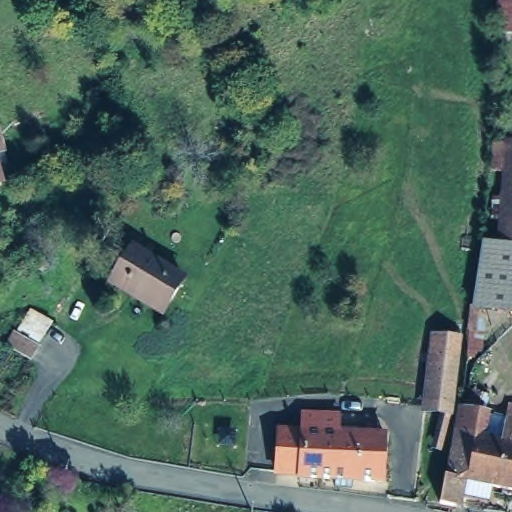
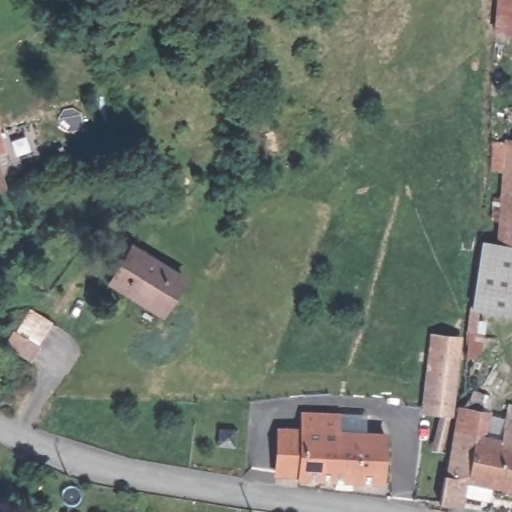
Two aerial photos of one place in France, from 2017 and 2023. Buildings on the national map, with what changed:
unchanged [(492,0),(512,0),(512,36),(491,35),(492,0)]
unchanged [(480,235),(489,237),(496,173),(485,172),(486,134),(512,134),(512,316),(469,313),(480,235)]
unchanged [(181,274),(161,309),(110,280),(129,244),(131,245),(181,274)]
unchanged [(14,332),(18,334),(32,316),(48,325),(35,346),(37,348),(30,359),(7,344),(14,332)]
unchanged [(462,508),(436,503),(443,449),(432,448),(434,410),(421,408),(427,327),(461,332),(455,406),(485,407),(485,418),(503,418),(502,404),(512,404),(512,483),(511,494),(468,486),(462,508)]
unchanged [(368,482),(285,477),(285,473),(276,473),(277,431),(303,432),(304,414),(320,415),(336,416),(336,434),(370,435),(368,482)]

